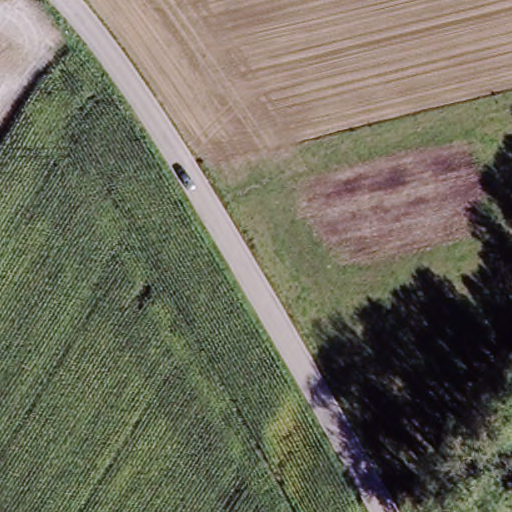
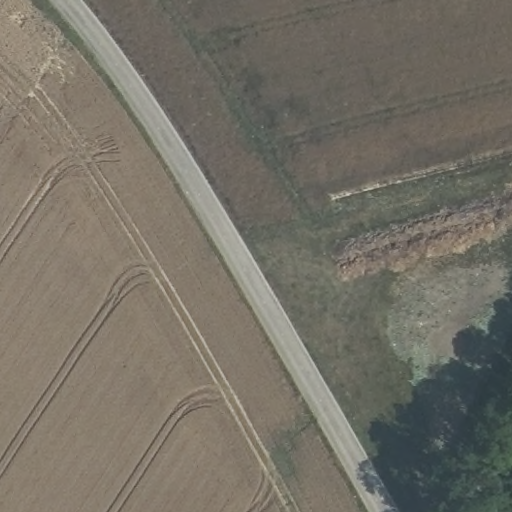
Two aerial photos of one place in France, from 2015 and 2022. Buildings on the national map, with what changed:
[]

